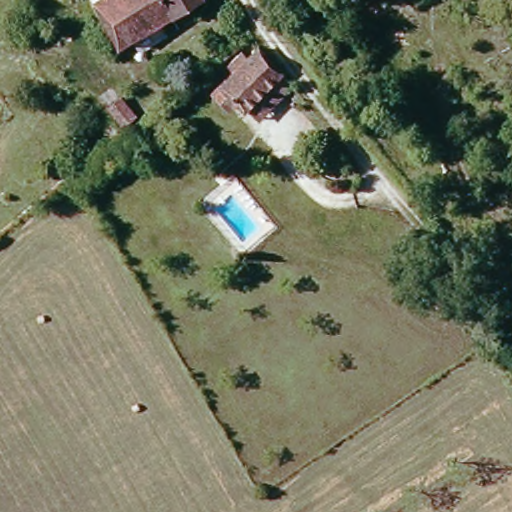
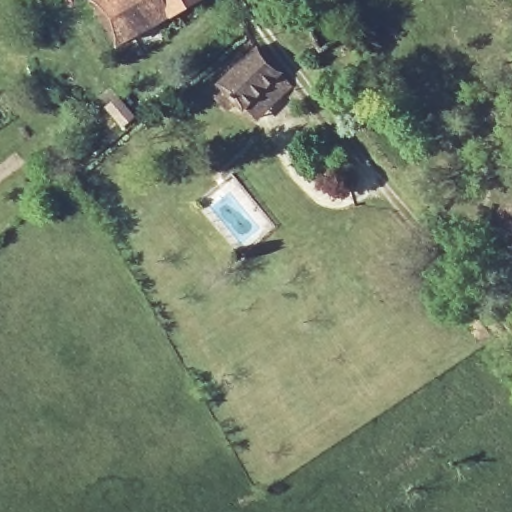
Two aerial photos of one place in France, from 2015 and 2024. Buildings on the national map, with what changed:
unchanged [(86,0),(156,0),(165,14),(116,41),(86,0)]
unchanged [(156,0),(190,0),(165,14),(156,0)]
unchanged [(212,86),(250,56),(270,83),(241,108),(230,108),(212,86)]
unchanged [(119,81),(142,111),(130,120),(107,90),(119,81)]

